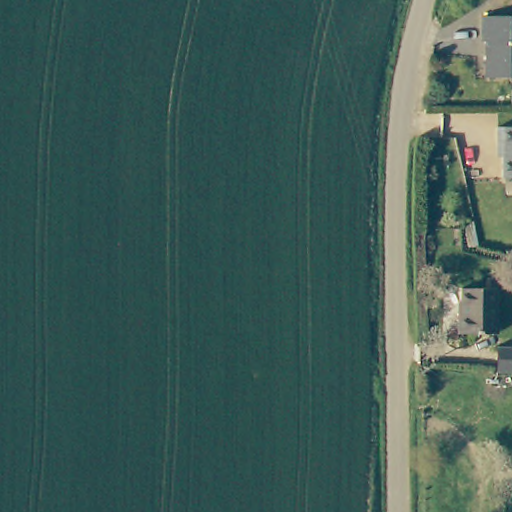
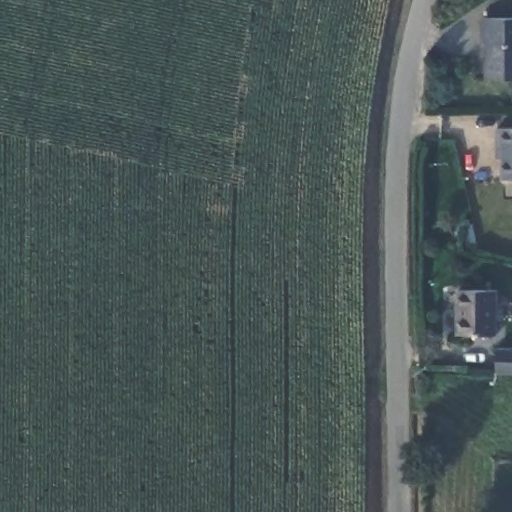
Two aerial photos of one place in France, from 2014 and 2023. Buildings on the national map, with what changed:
unchanged [(481,44),(475,44),(474,16),(512,13),(512,75),(485,79),(481,44)]
unchanged [(501,146),(495,146),(495,126),(512,126),(512,179),(501,179),(501,146)]
unchanged [(454,315),(460,314),(460,287),(495,285),(497,333),(453,332),(454,315)]
unchanged [(494,350),(512,350),(512,376),(492,375),(494,350)]

